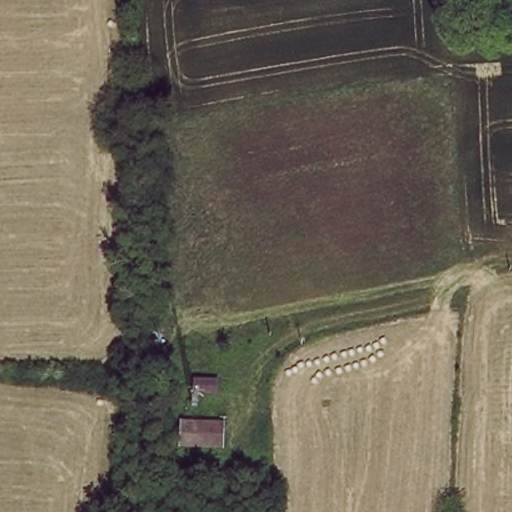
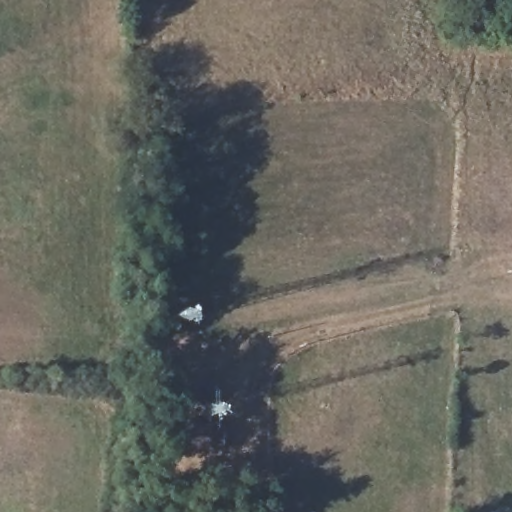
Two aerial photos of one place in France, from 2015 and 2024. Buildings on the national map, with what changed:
unchanged [(217,396),(194,395),(194,380),(218,381),(217,396)]
unchanged [(224,450),(183,448),(184,425),(225,427),(224,450)]

